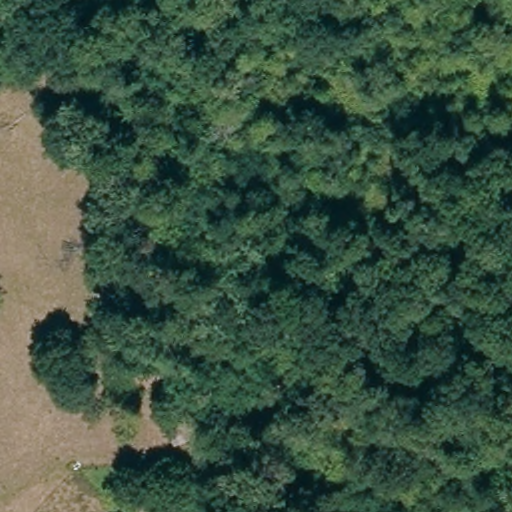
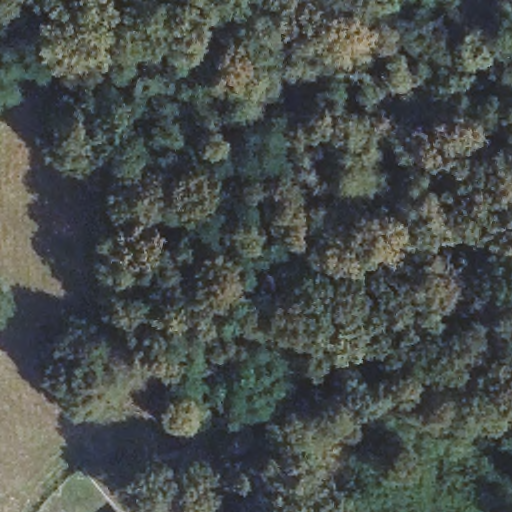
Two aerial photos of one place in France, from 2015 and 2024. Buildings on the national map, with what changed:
[]

